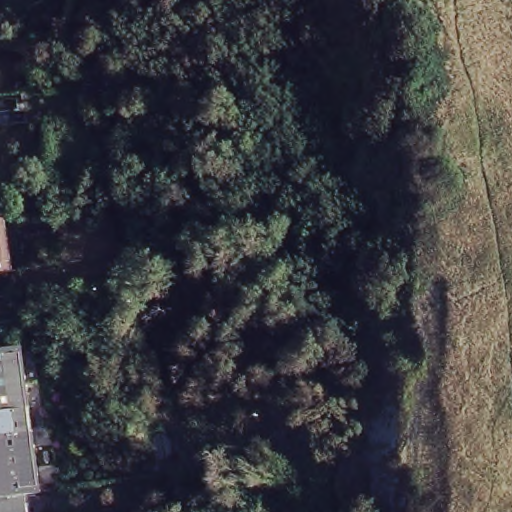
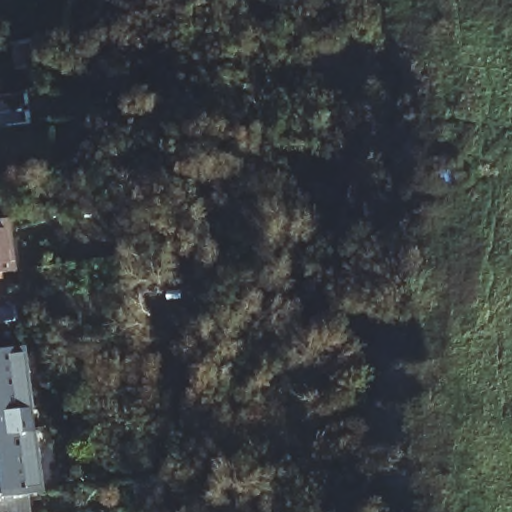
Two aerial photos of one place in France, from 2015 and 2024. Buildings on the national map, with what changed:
unchanged [(10,249),(13,275),(0,276),(0,224),(6,223),(10,249)]
unchanged [(8,352),(0,354),(0,327),(6,326),(8,352)]
unchanged [(15,351),(35,498),(25,500),(0,503),(0,354),(8,352),(15,351)]
unchanged [(27,512),(0,512),(0,503),(25,500),(27,512)]

